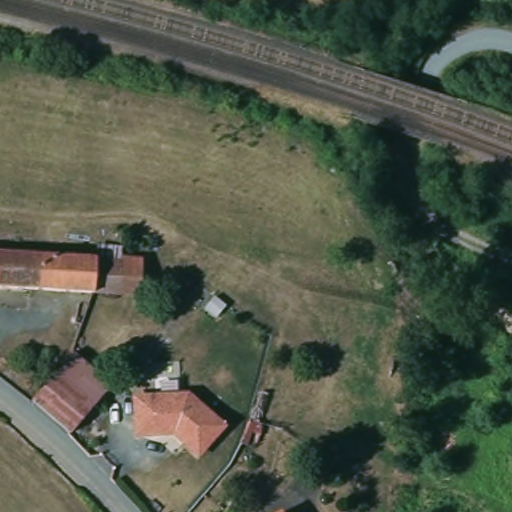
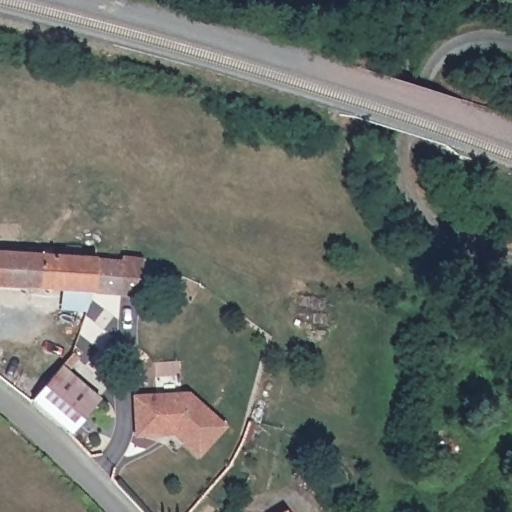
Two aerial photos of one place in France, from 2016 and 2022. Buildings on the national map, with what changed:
unchanged [(117,258),(117,255),(137,257),(135,294),(116,292),(113,292),(0,286),(0,249),(117,258)]
unchanged [(41,405),(32,397),(70,351),(108,382),(68,428),(41,405)]
unchanged [(191,390),(229,427),(201,458),(175,436),(139,437),(135,392),(191,390)]

